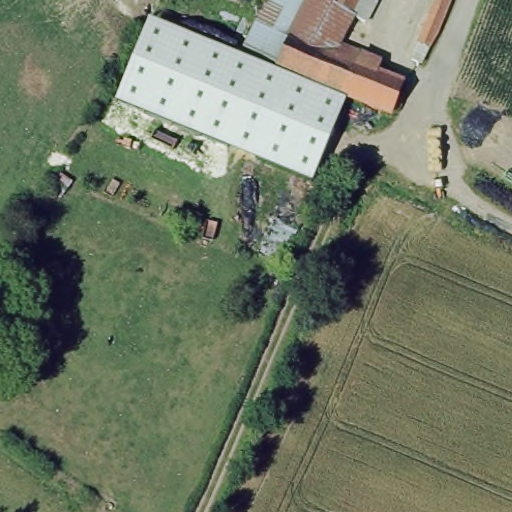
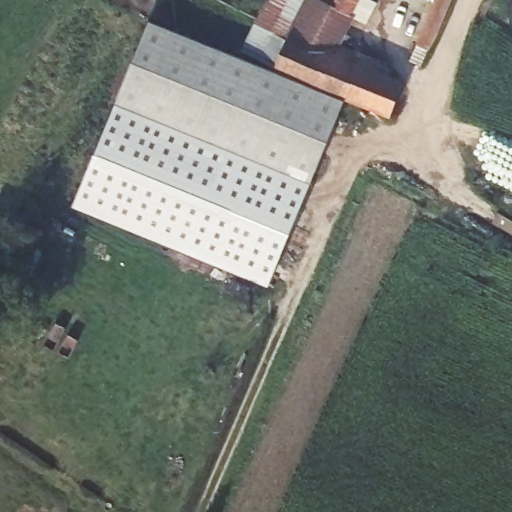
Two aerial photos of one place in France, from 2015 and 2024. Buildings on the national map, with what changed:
unchanged [(315,0),(292,38),(282,34),(270,65),(237,50),(262,0),(315,0)]
unchanged [(292,38),(315,0),(363,0),(337,44),(355,51),(352,60),(400,79),(385,114),(270,65),(282,34),(292,38)]
unchanged [(447,0),(434,33),(418,27),(429,0),(447,0)]
unchanged [(115,103),(147,20),(239,51),(270,65),(346,98),(312,183),(115,103)]
new [(312,183),(268,285),(74,206),(115,103),(312,183)]
unchanged [(40,188),(58,164),(75,175),(61,198),(40,188)]

